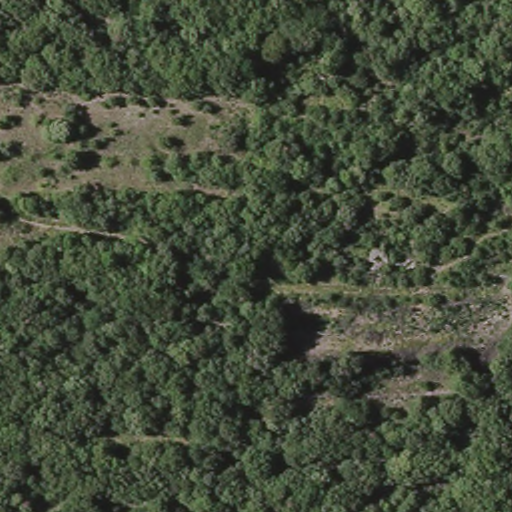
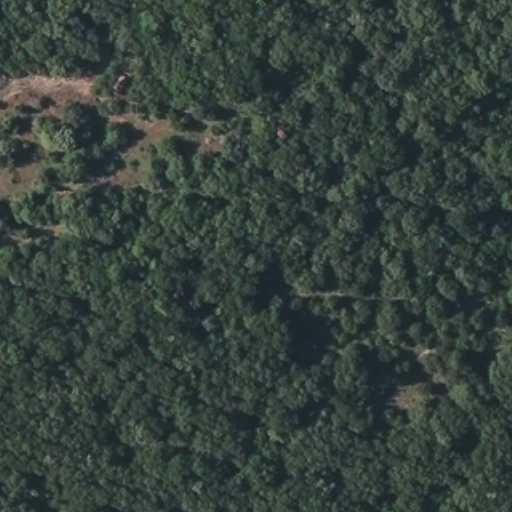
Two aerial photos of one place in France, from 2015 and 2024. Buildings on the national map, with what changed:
unchanged [(135,275),(115,275),(115,254),(135,255),(135,275)]

